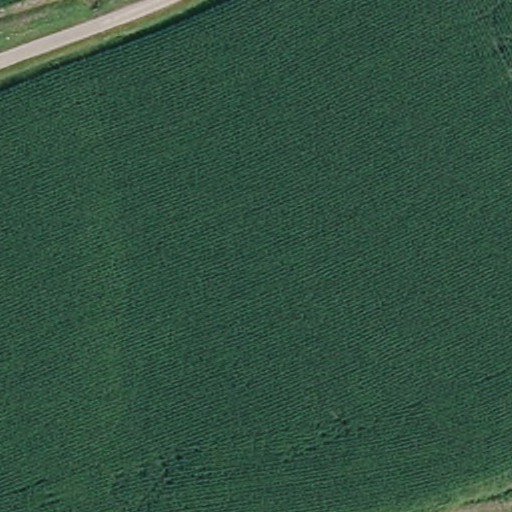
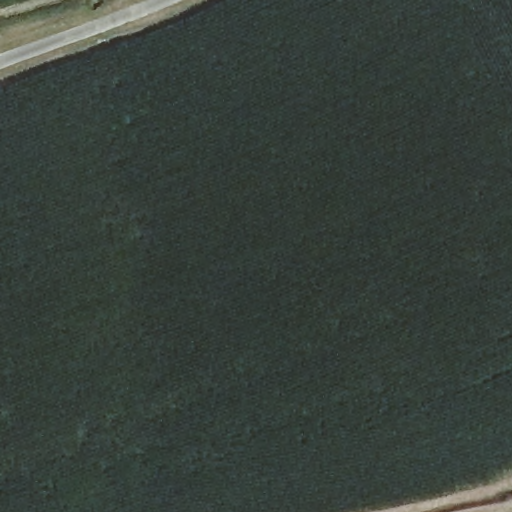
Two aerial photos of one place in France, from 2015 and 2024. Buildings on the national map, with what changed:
[]

